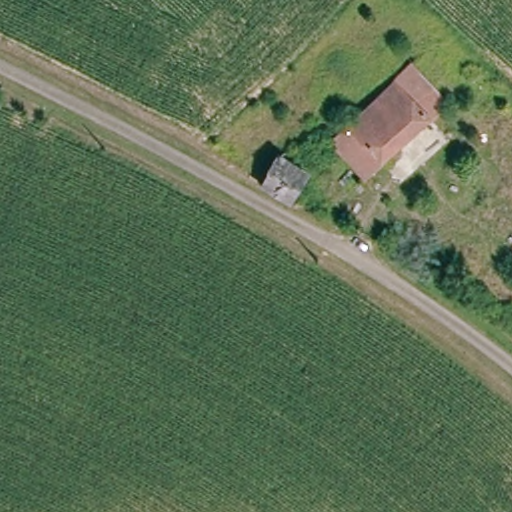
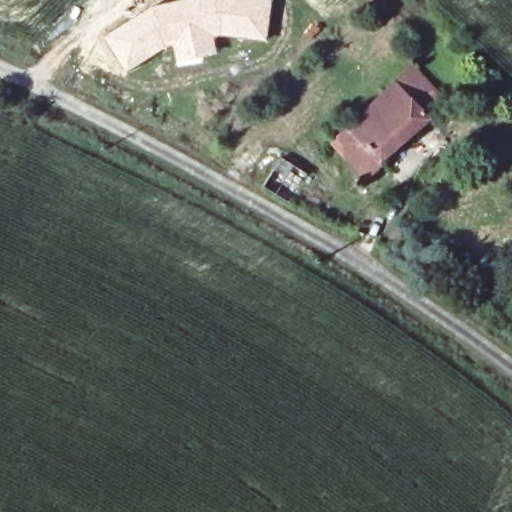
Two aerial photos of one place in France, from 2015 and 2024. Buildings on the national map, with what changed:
new [(149,7),(164,2),(176,0),(273,0),(267,41),(215,37),(218,55),(177,65),(174,45),(126,72),(104,37),(149,7)]
unchanged [(422,110),(394,84),(411,69),(449,107),(439,116),(433,122),(422,110)]
unchanged [(371,178),(344,153),(330,167),(319,156),(339,133),(394,84),(422,110),(433,122),(371,178)]
unchanged [(312,169),(290,201),(262,186),(283,154),(305,166),(312,169)]

